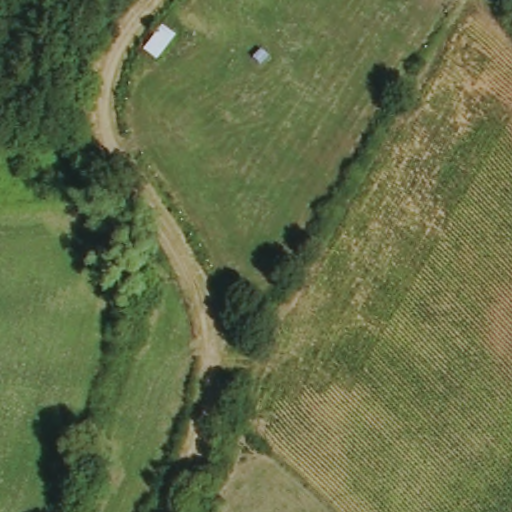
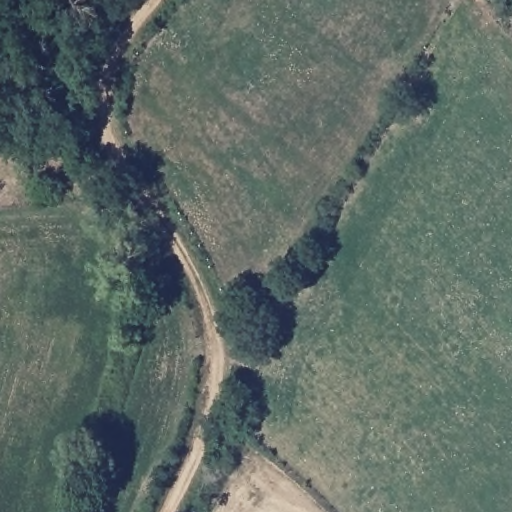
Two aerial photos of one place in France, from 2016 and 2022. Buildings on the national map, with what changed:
unchanged [(157,64),(141,53),(163,26),(178,38),(157,64)]

